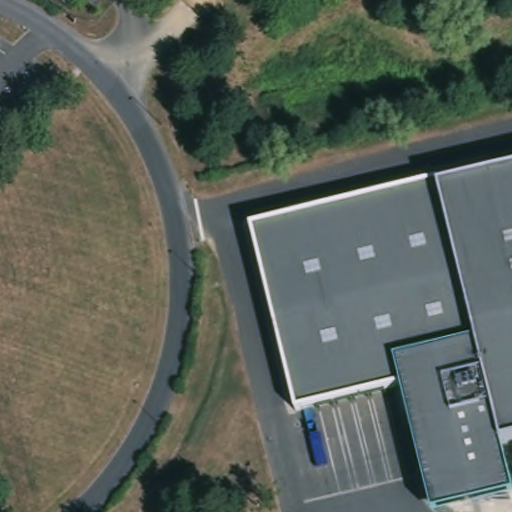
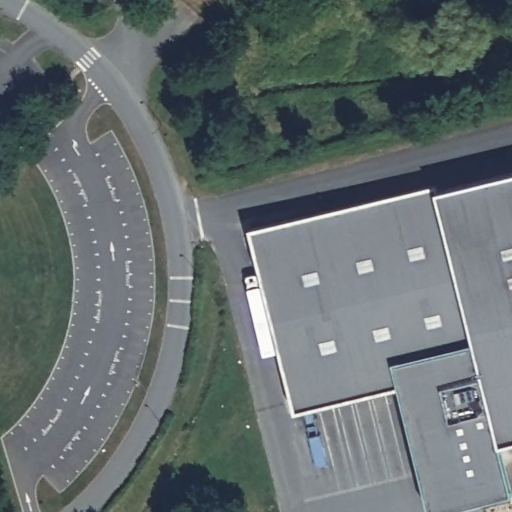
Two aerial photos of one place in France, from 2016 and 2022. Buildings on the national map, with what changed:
unchanged [(512,484),(512,493),(437,512),(433,512),(401,385),(296,412),(252,228),(439,181),(441,189),(512,172),(512,441),(502,443),(512,484)]

